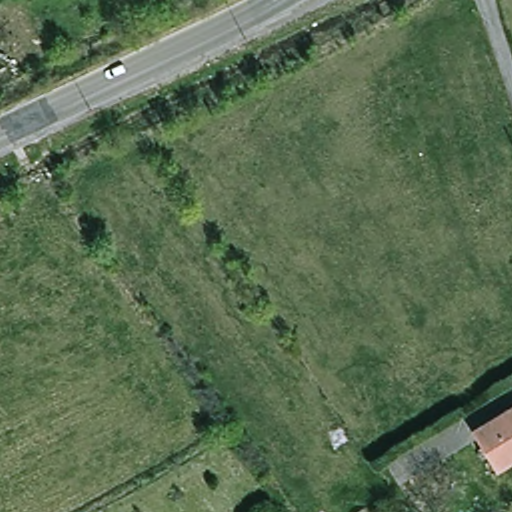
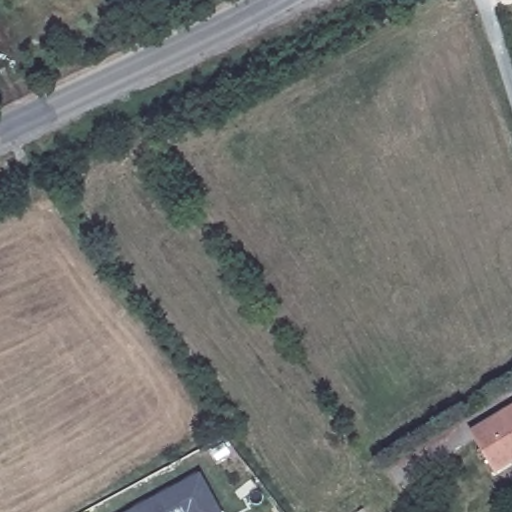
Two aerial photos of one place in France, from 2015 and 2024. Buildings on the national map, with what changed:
unchanged [(497,474),(495,472),(475,438),(462,417),(510,387),(512,391),(512,462),(512,463),(512,465),(497,474)]
unchanged [(462,417),(475,438),(399,486),(397,483),(385,464),(462,417)]
new [(202,473),(221,512),(127,512),(202,473)]

